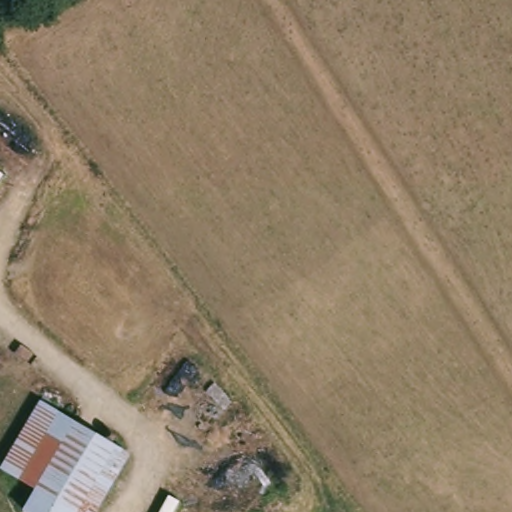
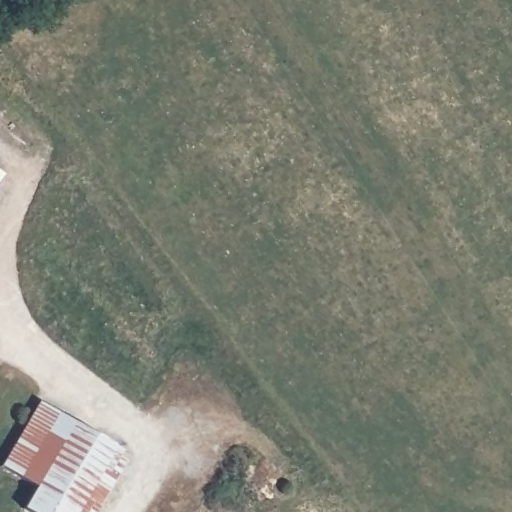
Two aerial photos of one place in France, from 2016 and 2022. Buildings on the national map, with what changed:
unchanged [(0,174),(0,172),(1,173),(0,174)]
unchanged [(76,512),(28,512),(24,510),(36,488),(1,468),(38,403),(114,446),(76,512)]

